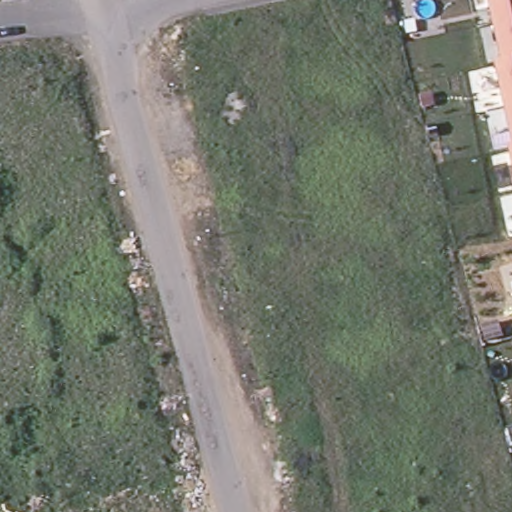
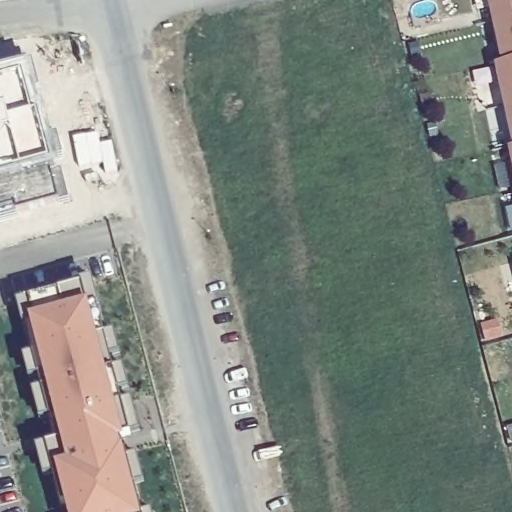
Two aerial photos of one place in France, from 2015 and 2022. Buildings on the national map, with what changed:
unchanged [(495,64),(502,62),(490,0),(512,0),(512,147),(495,64)]
new [(40,82),(34,85),(46,128),(55,126),(62,156),(50,159),(54,168),(59,166),(65,193),(12,208),(10,204),(0,205),(0,62),(32,55),(40,82)]
unchanged [(508,148),(512,147),(512,165),(508,148)]
new [(121,432),(123,440),(142,512),(69,512),(66,501),(62,503),(47,443),(57,440),(25,323),(33,317),(27,297),(82,284),(87,305),(96,305),(129,435),(121,432)]

